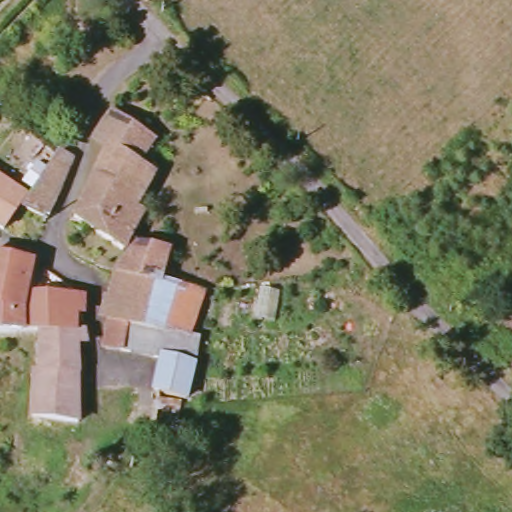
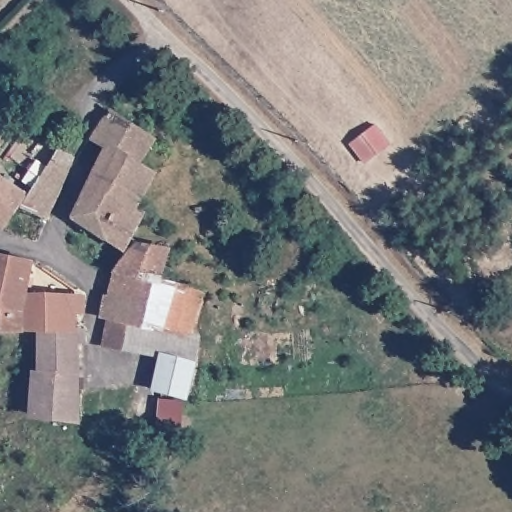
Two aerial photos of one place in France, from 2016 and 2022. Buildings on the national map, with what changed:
unchanged [(96,145),(111,109),(157,137),(145,167),(156,170),(140,206),(149,212),(127,252),(75,221),(107,150),(96,145)]
unchanged [(33,197),(60,155),(62,151),(76,154),(72,169),(59,197),(49,217),(23,204),(29,194),(33,197)]
unchanged [(23,204),(7,229),(0,224),(0,175),(29,194),(23,204)]
unchanged [(154,245),(173,251),(167,282),(206,291),(195,334),(203,335),(199,363),(189,401),(176,434),(154,427),(152,392),(159,357),(103,350),(111,320),(100,317),(114,272),(133,250),(154,245)]
unchanged [(91,343),(80,343),(80,391),(78,418),(78,422),(33,419),(35,374),(40,375),(43,337),(0,333),(0,252),(32,260),(29,293),(66,297),(82,298),(80,331),(92,331),(91,343)]

